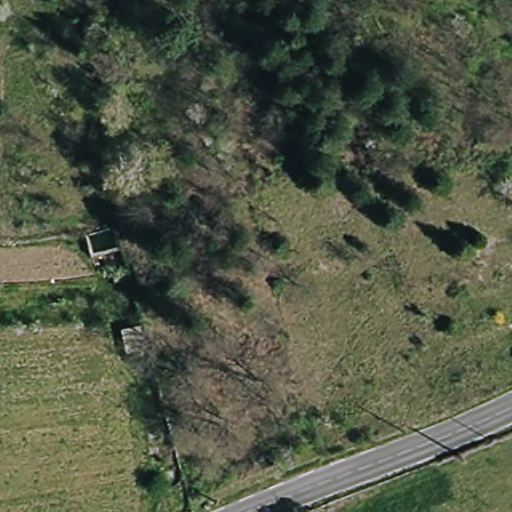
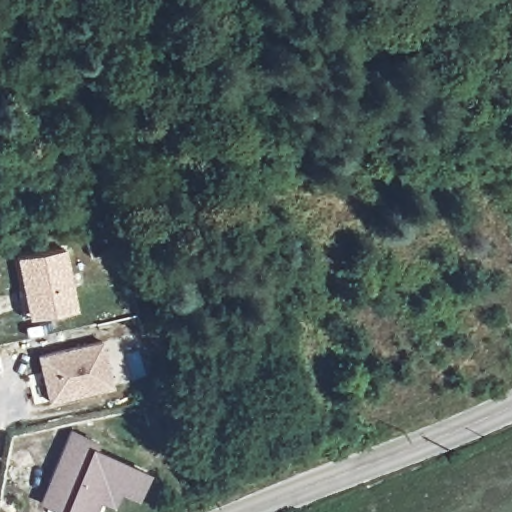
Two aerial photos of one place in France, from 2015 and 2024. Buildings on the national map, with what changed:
new [(29,318),(18,259),(67,249),(79,308),(29,318)]
new [(113,387),(47,401),(38,355),(103,342),(113,387)]
new [(119,494),(113,508),(99,502),(94,512),(60,512),(37,502),(68,431),(100,442),(96,449),(147,472),(137,501),(119,494)]

